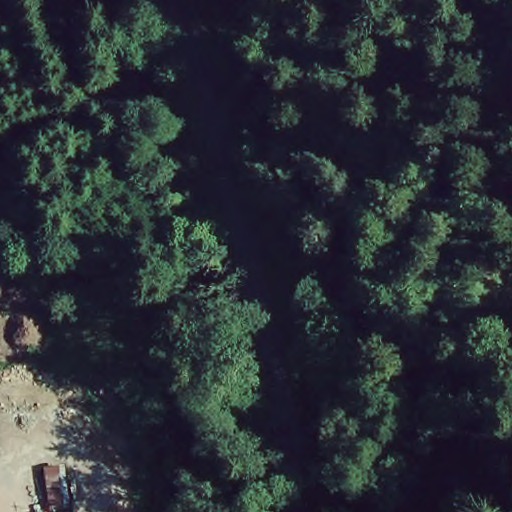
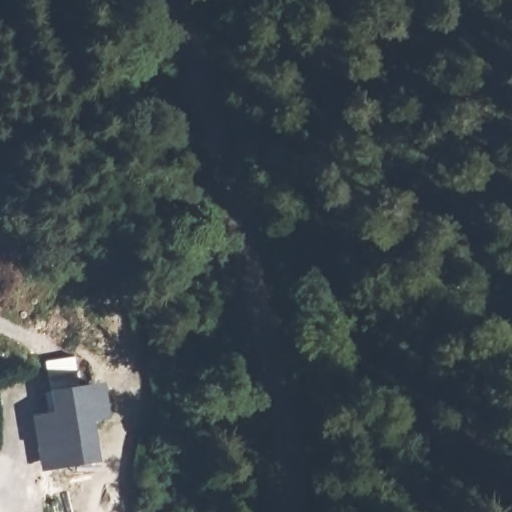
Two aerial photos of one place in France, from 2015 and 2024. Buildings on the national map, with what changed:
new [(50,411),(48,390),(106,383),(112,421),(100,423),(100,425),(97,426),(102,463),(40,471),(30,415),(50,411)]
demolished [(48,511),(39,470),(53,461),(67,505),(48,511)]
new [(62,510),(50,511),(45,471),(57,470),(62,510)]

